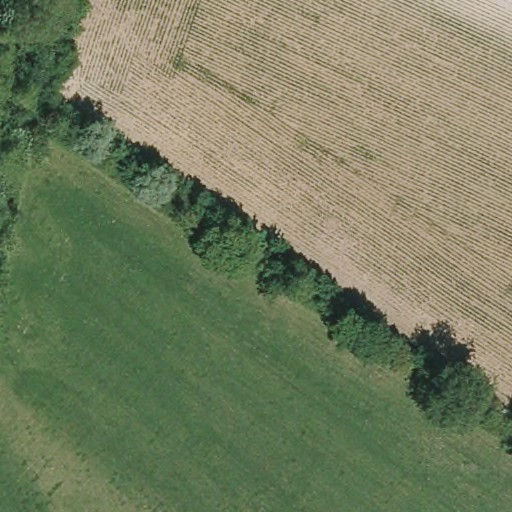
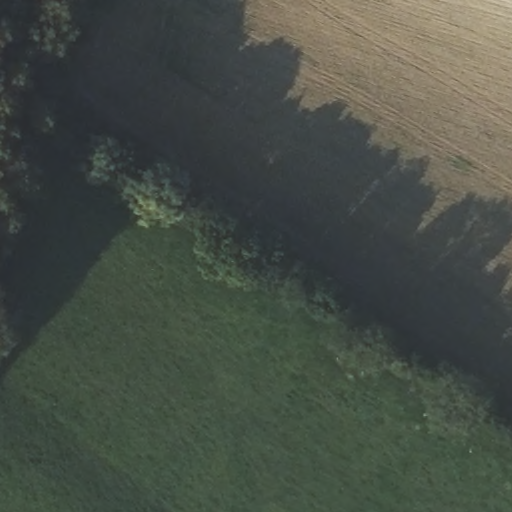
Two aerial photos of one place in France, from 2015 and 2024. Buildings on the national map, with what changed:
[]

